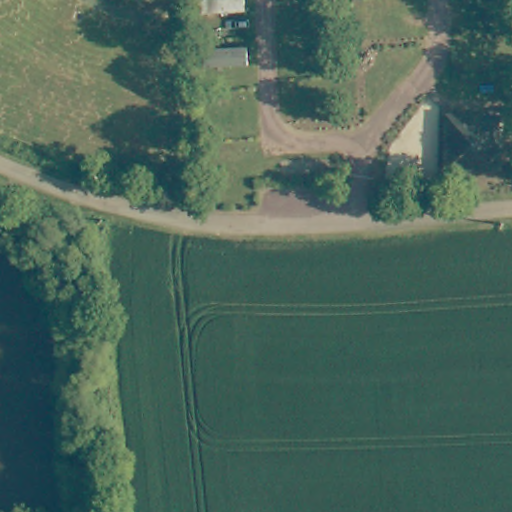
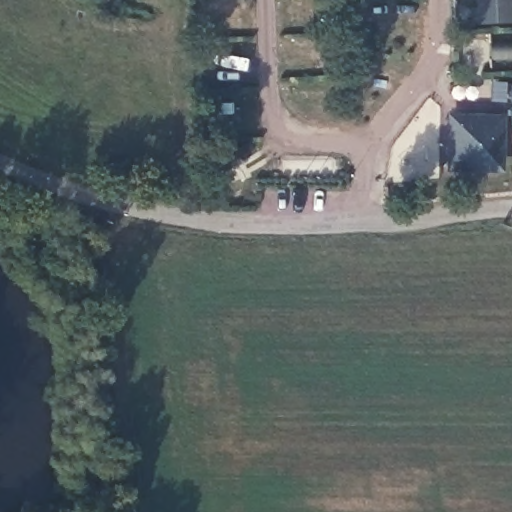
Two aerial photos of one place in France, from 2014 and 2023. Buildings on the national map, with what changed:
new [(512,28),(477,29),(476,0),(512,0),(512,28)]
unchanged [(499,119),(498,168),(448,167),(449,116),(499,119)]

